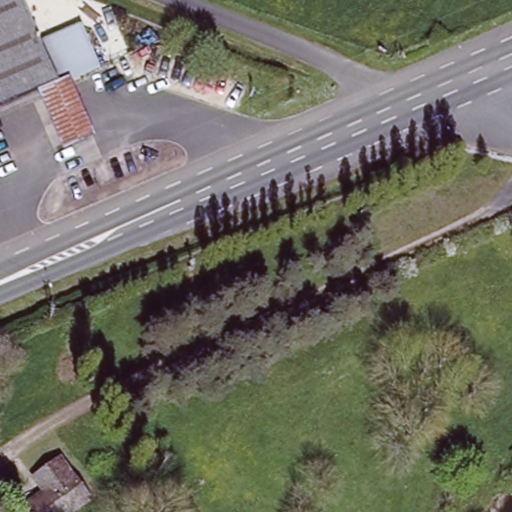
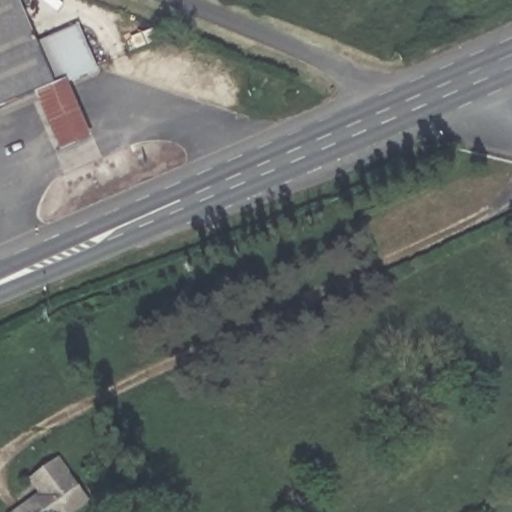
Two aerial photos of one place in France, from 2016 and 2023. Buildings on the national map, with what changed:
unchanged [(79,72),(78,72),(68,76),(36,90),(0,105),(0,0),(22,0),(39,40),(80,22),(98,65),(79,72)]
unchanged [(93,137),(61,150),(36,90),(68,76),(93,137)]
unchanged [(43,492),(33,478),(58,461),(85,499),(68,512),(17,512),(43,492)]

